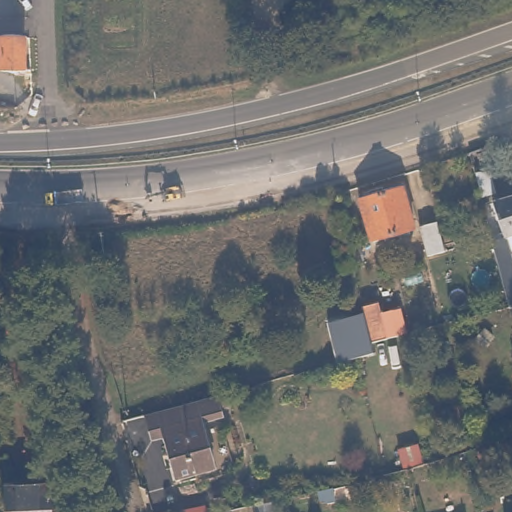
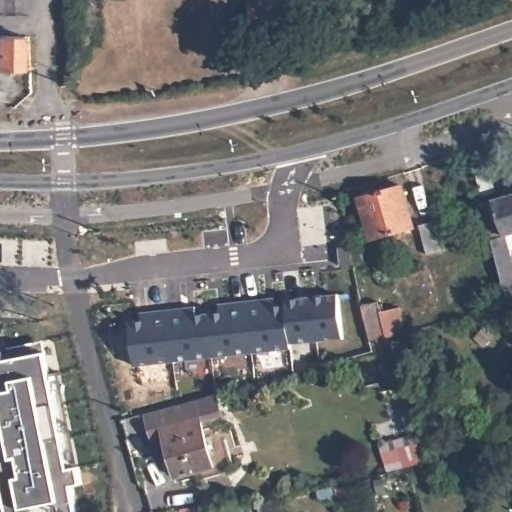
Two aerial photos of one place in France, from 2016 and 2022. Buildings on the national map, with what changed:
unchanged [(27,66),(0,67),(1,49),(0,49),(0,36),(28,36),(27,66)]
unchanged [(405,226),(366,239),(354,200),(392,189),(405,226)]
unchanged [(491,240),(505,235),(494,201),(512,196),(512,249),(512,304),(510,305),(491,240)]
unchanged [(434,249),(419,254),(410,225),(426,220),(434,249)]
new [(341,293),(344,338),(291,344),(292,349),(133,366),(129,323),(142,322),(141,312),(197,305),(197,312),(220,310),(220,303),(275,297),(274,303),(286,302),(286,297),(341,293)]
unchanged [(388,310),(408,306),(414,329),(387,336),(379,339),(370,306),(385,302),(388,310)]
demolished [(339,360),(337,351),(330,322),(368,311),(375,340),(376,349),(339,360)]
new [(9,349),(46,341),(46,352),(70,467),(79,465),(83,483),(73,486),(77,512),(3,512),(0,498),(0,350),(9,349)]
unchanged [(182,475),(171,433),(160,436),(153,413),(193,401),(218,395),(224,413),(204,420),(217,466),(182,475)]
demolished [(7,512),(6,483),(49,482),(50,512),(7,512)]

